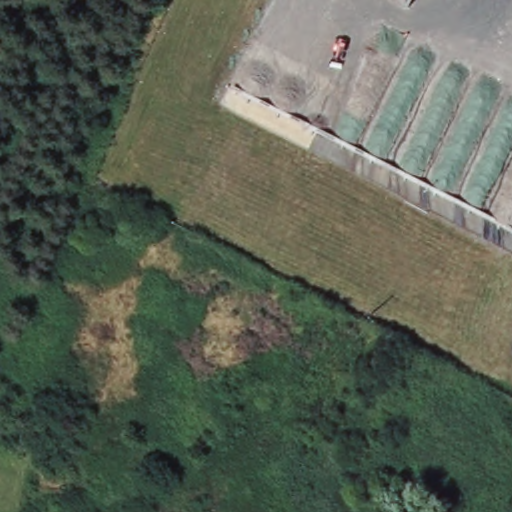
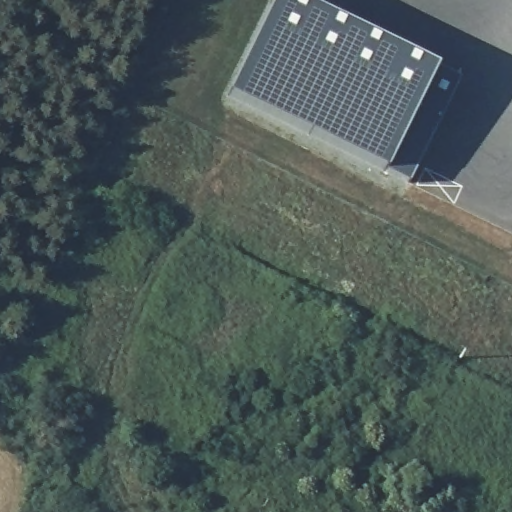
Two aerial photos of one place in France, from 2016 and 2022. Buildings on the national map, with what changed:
new [(408,185),(229,94),(275,0),(287,0),(458,84),(408,185)]

